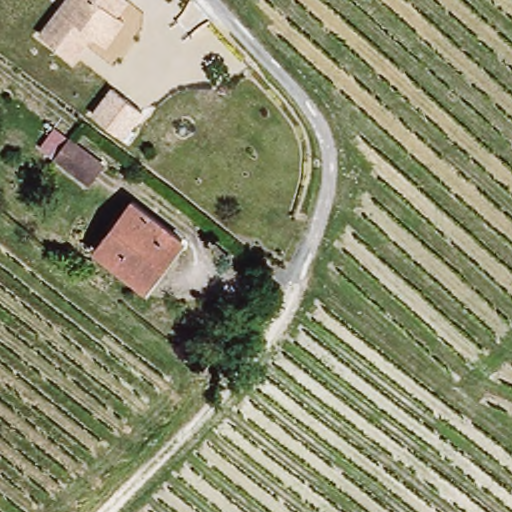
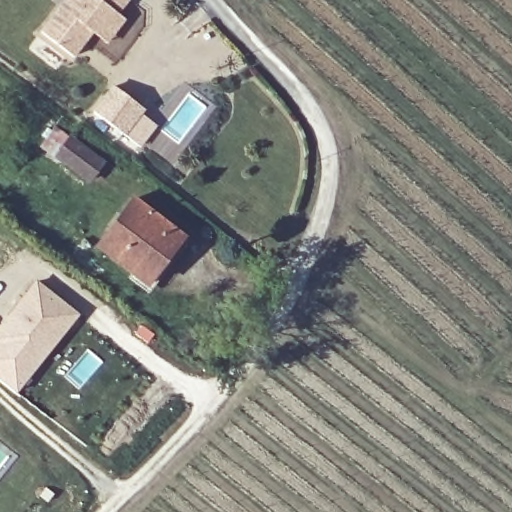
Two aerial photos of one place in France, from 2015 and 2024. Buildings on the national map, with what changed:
unchanged [(97,46),(83,35),(66,60),(35,37),(61,0),(120,0),(109,17),(116,21),(97,46)]
unchanged [(141,111),(124,136),(93,114),(111,89),(141,111)]
unchanged [(91,176),(62,156),(76,135),(105,157),(91,176)]
unchanged [(146,284),(98,249),(133,201),(180,236),(146,284)]
new [(35,281),(77,315),(15,393),(0,381),(0,325),(35,281)]

